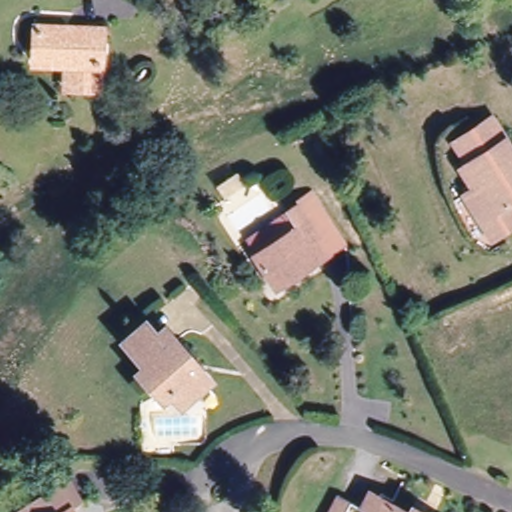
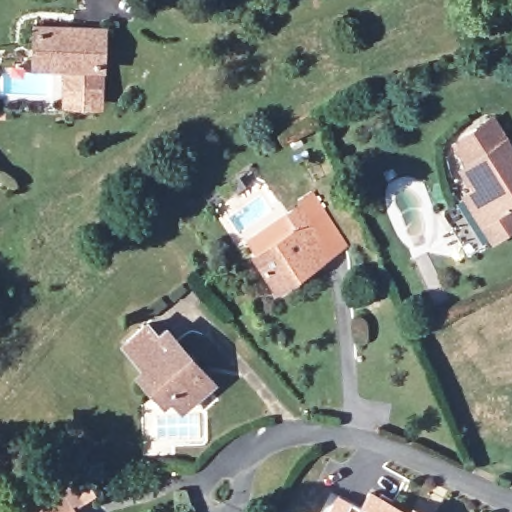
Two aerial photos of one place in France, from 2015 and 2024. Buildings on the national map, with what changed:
unchanged [(64,89),(65,76),(65,63),(50,61),(33,61),(34,41),(35,23),(105,26),(103,79),(102,90),(64,89)]
unchanged [(472,191),(482,185),(471,165),(478,161),(464,137),(497,116),(512,140),(512,223),(498,232),(472,191)]
unchanged [(309,204),(339,252),(313,268),(300,248),(313,240),(296,212),(309,204)]
unchanged [(249,263),(252,261),(243,248),(282,221),(296,212),(313,240),(300,248),(313,268),(270,295),(249,263)]
unchanged [(168,399),(160,405),(133,375),(141,368),(120,343),(142,324),(153,336),(161,330),(206,385),(186,402),(177,410),(168,399)]
unchanged [(347,494),(369,507),(377,492),(414,512),(337,512),(347,494)]
unchanged [(76,493),(85,512),(40,512),(76,493)]
unchanged [(421,508),(428,512),(418,512),(421,508)]

